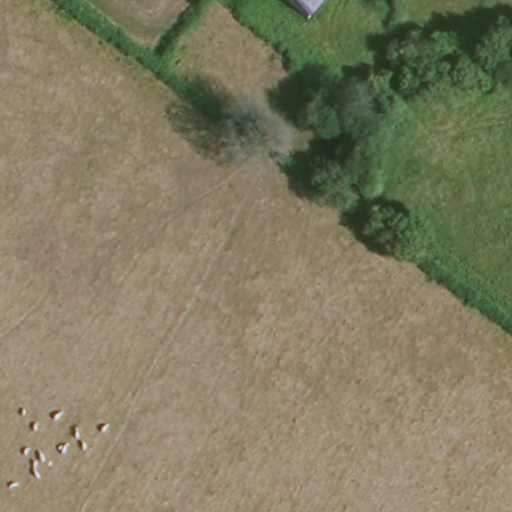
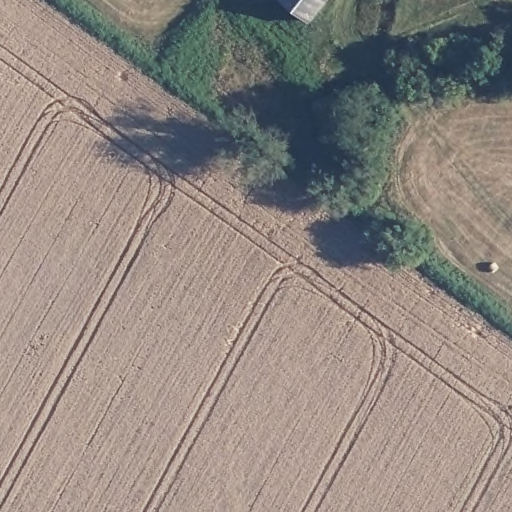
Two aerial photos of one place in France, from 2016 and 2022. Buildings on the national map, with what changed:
unchanged [(282,0),(329,0),(309,25),(282,0)]

